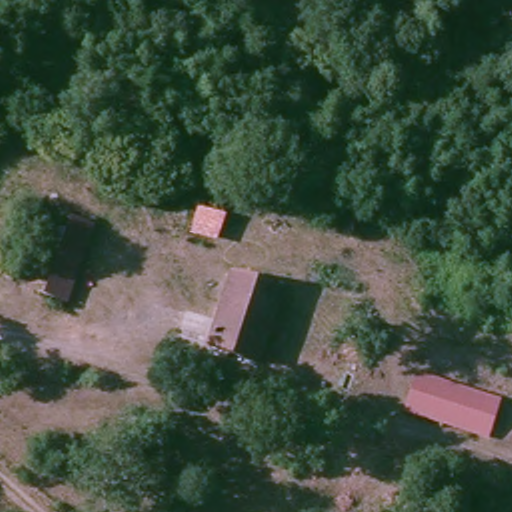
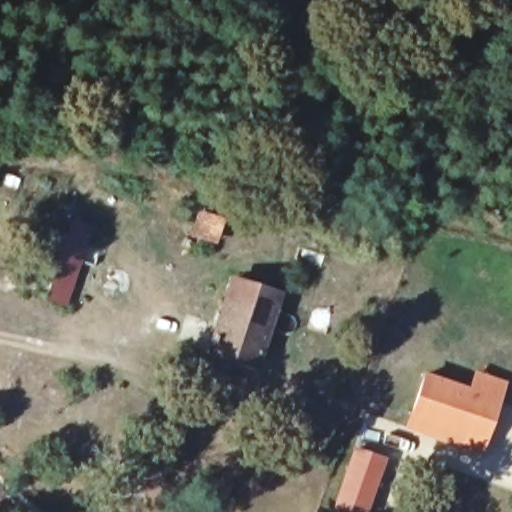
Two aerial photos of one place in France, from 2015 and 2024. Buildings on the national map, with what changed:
unchanged [(24,281),(46,218),(102,239),(76,315),(5,290),(9,276),(24,281)]
unchanged [(211,227),(206,238),(194,233),(200,220),(212,225),(211,227)]
unchanged [(203,351),(226,280),(272,296),(249,367),(203,351)]
unchanged [(410,381),(417,359),(497,386),(490,407),(410,381)]
unchanged [(397,417),(410,381),(490,407),(478,444),(397,417)]
new [(385,457),(368,512),(347,512),(332,506),(353,445),(385,457)]

